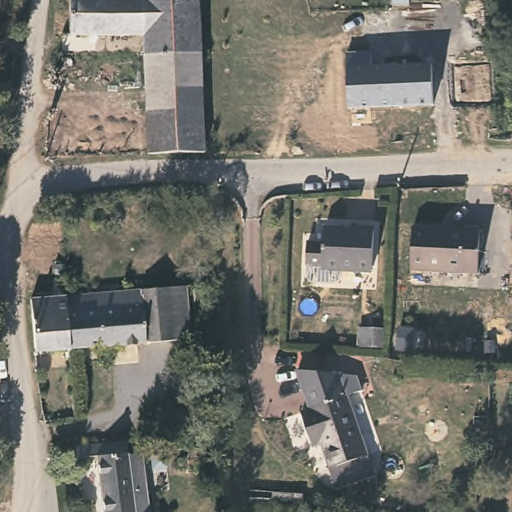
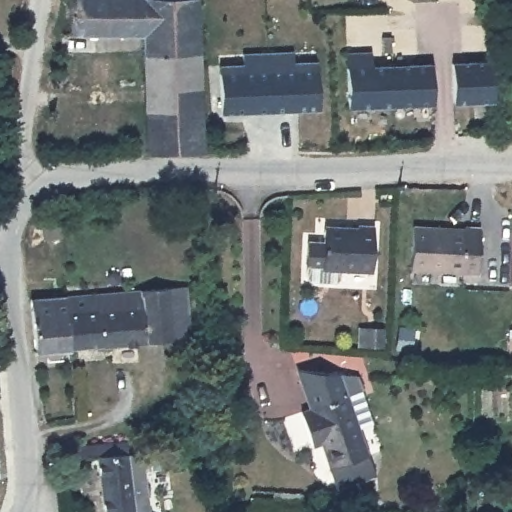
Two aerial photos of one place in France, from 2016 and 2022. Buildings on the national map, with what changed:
unchanged [(65,37),(65,0),(141,0),(194,1),(195,57),(136,56),(136,38),(65,37)]
new [(218,65),(241,64),(241,54),(292,51),(292,61),(316,61),(320,110),(220,115),(218,65)]
unchanged [(432,105),(349,109),(347,65),(348,52),(372,51),(373,65),(430,64),(432,105)]
unchanged [(195,57),(200,160),(141,160),(137,70),(136,56),(195,57)]
unchanged [(492,62),(495,102),(452,104),(452,62),(492,62)]
unchanged [(378,234),(376,275),(344,273),(343,287),(338,292),(315,291),(310,286),(311,272),(310,272),(311,247),(329,247),(330,231),(378,234)]
unchanged [(476,232),(475,280),(408,278),(409,235),(458,237),(462,231),(476,232)]
unchanged [(61,298),(181,291),(185,345),(65,353),(61,298)]
unchanged [(30,356),(24,301),(61,298),(65,353),(30,356)]
unchanged [(329,461),(320,465),(310,433),(320,431),(306,391),(367,397),(371,411),(356,415),(377,478),(338,490),(329,461)]
unchanged [(100,464),(80,466),(79,451),(130,448),(130,461),(145,460),(151,512),(107,512),(100,464)]

